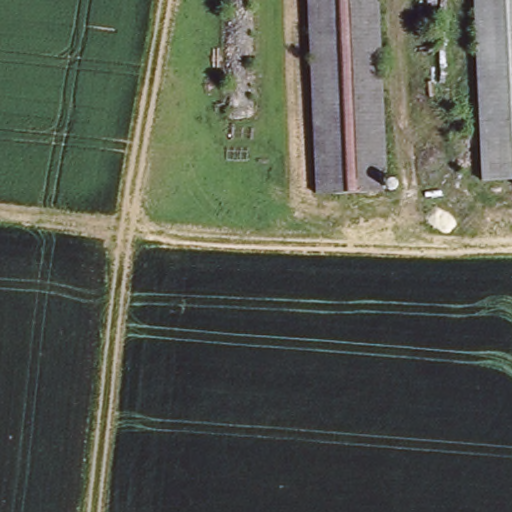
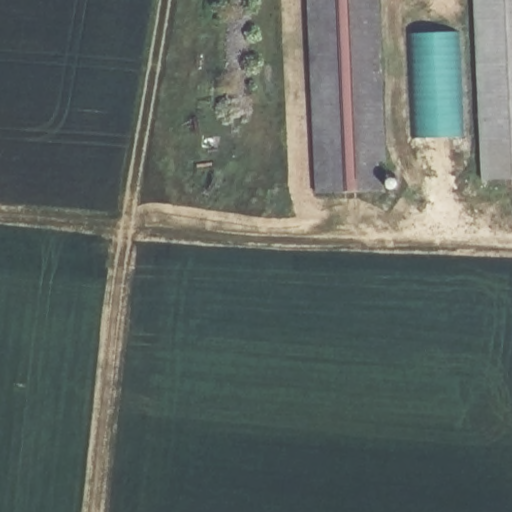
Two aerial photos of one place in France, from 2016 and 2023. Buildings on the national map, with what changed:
unchanged [(396,190),(316,193),(306,0),(383,0),(396,190)]
unchanged [(470,0),(512,0),(512,174),(481,174),(470,0)]
new [(454,31),(461,136),(417,139),(411,34),(454,31)]

